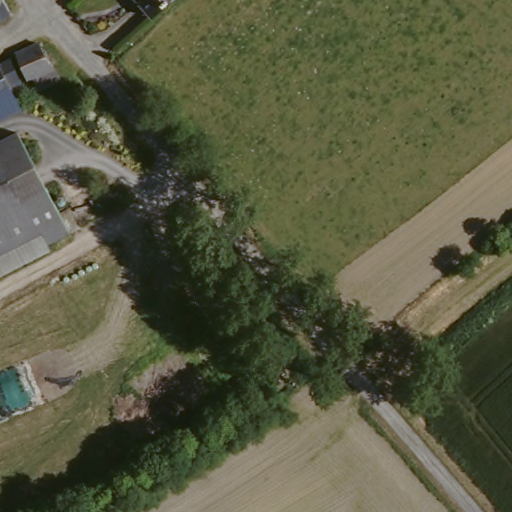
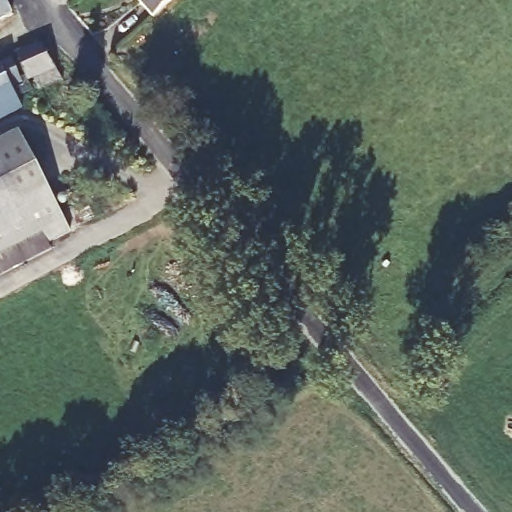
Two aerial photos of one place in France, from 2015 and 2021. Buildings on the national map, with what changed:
unchanged [(130,0),(163,0),(144,16),(130,0)]
unchanged [(0,19),(0,6),(6,16),(0,19)]
unchanged [(30,40),(47,64),(24,75),(11,51),(30,40)]
unchanged [(17,82),(6,88),(16,106),(0,114),(0,57),(3,55),(17,82)]
unchanged [(18,144),(45,189),(20,202),(0,168),(0,153),(18,144)]
unchanged [(20,202),(0,213),(0,168),(20,202)]
unchanged [(20,202),(45,189),(70,233),(45,246),(39,236),(0,256),(0,213),(20,202)]

